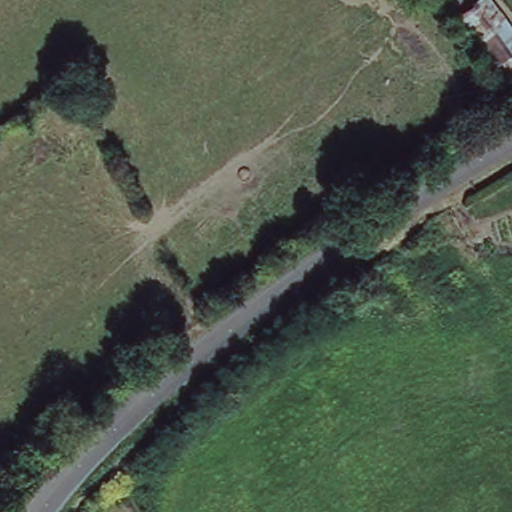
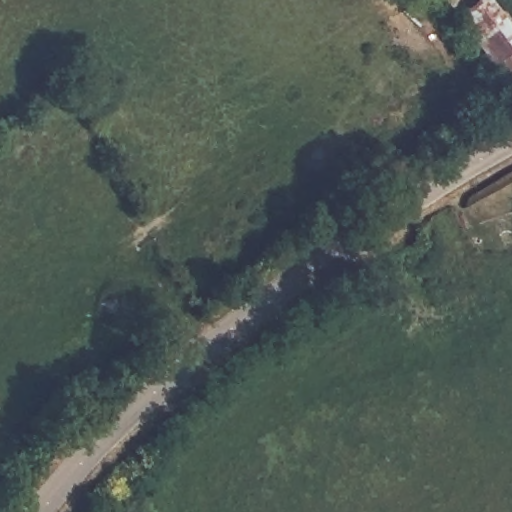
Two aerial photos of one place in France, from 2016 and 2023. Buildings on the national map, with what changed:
unchanged [(451,20),(473,0),(495,0),(512,27),(512,78),(501,86),(451,20)]

